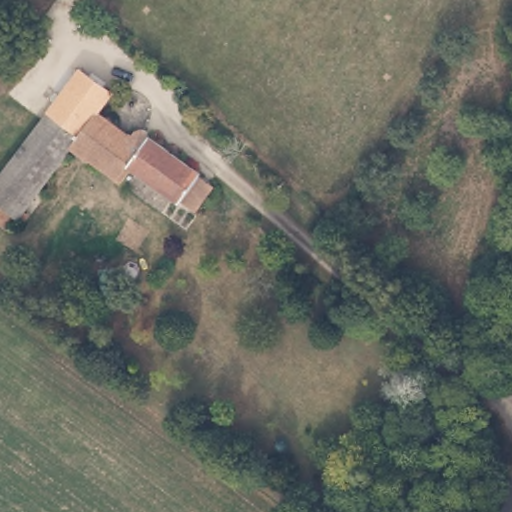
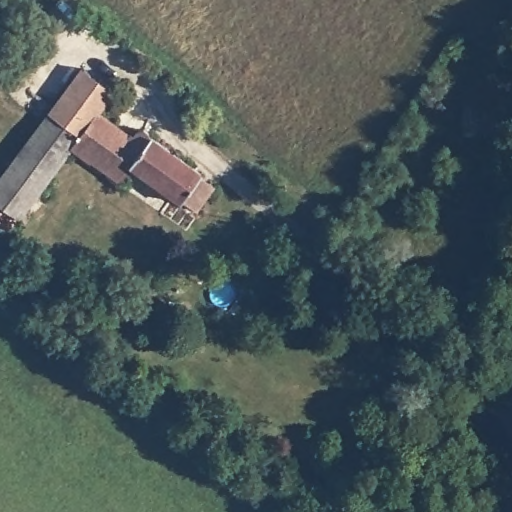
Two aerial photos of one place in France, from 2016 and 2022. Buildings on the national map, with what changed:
unchanged [(81,149),(69,141),(11,222),(0,214),(0,172),(79,60),(109,84),(98,101),(117,115),(113,122),(125,130),(139,116),(146,120),(144,125),(215,180),(196,205),(135,160),(122,177),(103,164),(81,149)]

